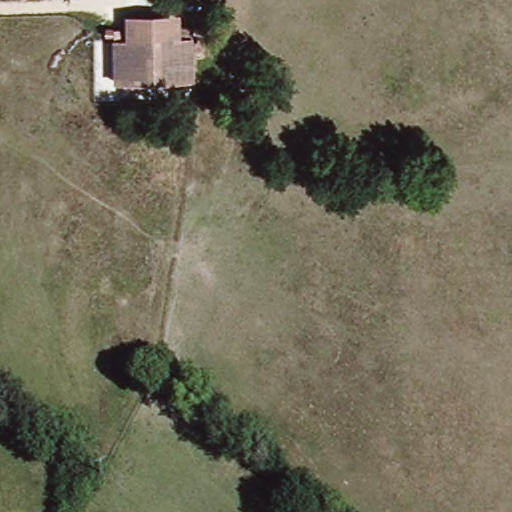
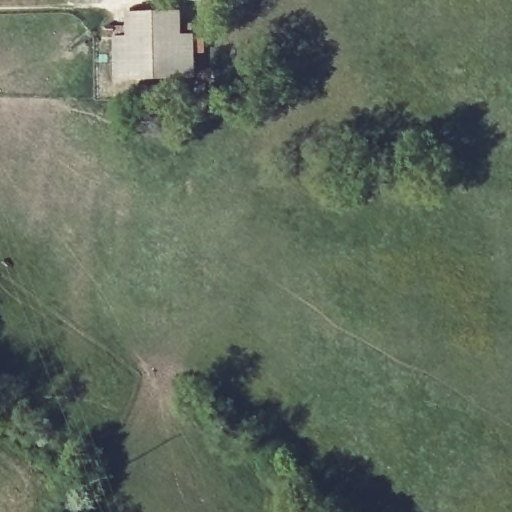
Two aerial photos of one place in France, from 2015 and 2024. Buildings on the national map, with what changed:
unchanged [(126,33),(125,7),(184,6),(186,31),(126,33)]
unchanged [(112,77),(110,34),(126,33),(186,31),(188,74),(112,77)]

